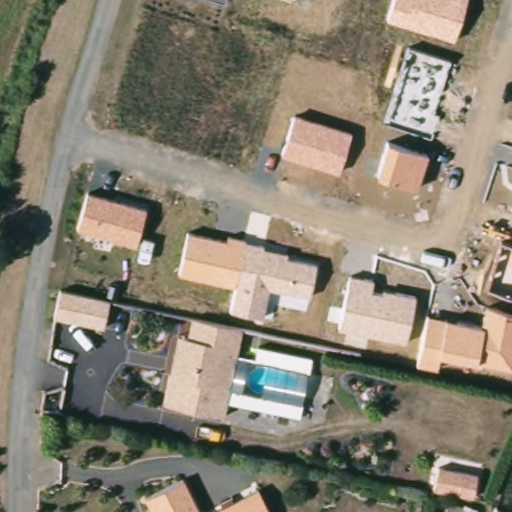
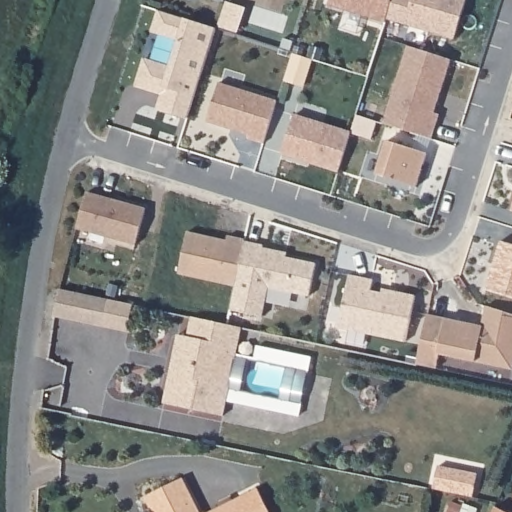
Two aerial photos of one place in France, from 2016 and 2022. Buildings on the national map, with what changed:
new [(384,22),(329,5),(330,0),(391,0),(386,17),(384,22)]
unchanged [(457,39),(386,17),(391,0),(468,0),(457,39)]
new [(145,60),(169,68),(178,40),(153,32),(160,11),(217,29),(189,119),(159,109),(163,95),(136,86),(145,60)]
unchanged [(452,57),(435,112),(441,113),(435,134),(384,120),(408,42),(452,57)]
new [(220,82),(278,101),(264,144),(248,139),(249,135),(207,122),(220,82)]
unchanged [(354,130),(340,174),(282,155),(295,112),(354,130)]
unchanged [(430,153),(417,191),(373,177),(386,138),(430,153)]
unchanged [(148,207),(137,245),(75,229),(87,190),(148,207)]
unchanged [(512,211),(512,214),(511,214),(512,211)]
unchanged [(226,237),(227,233),(247,237),(246,241),(264,245),(264,247),(288,250),(287,257),(320,262),(313,298),(271,288),(265,318),(231,312),(236,285),(178,272),(188,230),(226,237)]
unchanged [(500,240),(512,243),(512,296),(486,289),(500,240)]
unchanged [(373,276),(371,288),(384,291),(384,288),(416,295),(407,342),(337,328),(348,272),(373,276)]
unchanged [(109,296),(104,323),(55,315),(60,288),(109,296)]
unchanged [(486,304),(512,313),(512,369),(440,355),(436,371),(415,365),(428,311),(479,325),(486,304)]
unchanged [(193,321),(198,322),(223,327),(243,331),(236,357),(222,355),(216,383),(230,387),(225,413),(166,402),(171,375),(179,336),(184,337),(189,337),(193,321)]
new [(439,466),(478,474),(473,497),(434,488),(439,466)]
unchanged [(205,512),(158,512),(150,497),(188,478),(205,512)]
unchanged [(278,512),(218,512),(266,488),(278,512)]
unchanged [(499,512),(500,510),(503,512),(499,512)]

